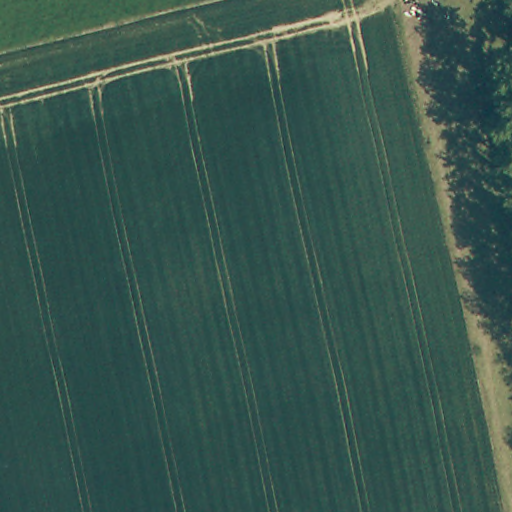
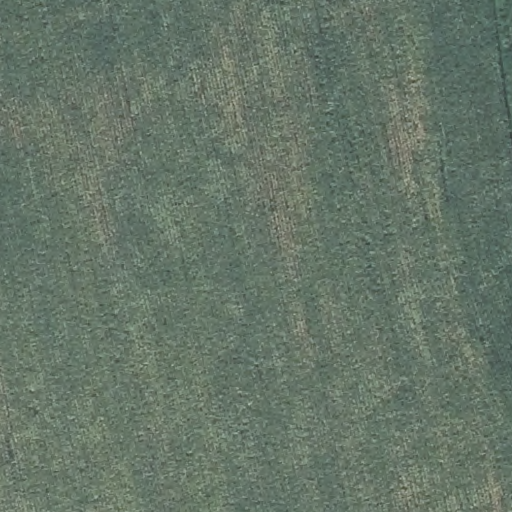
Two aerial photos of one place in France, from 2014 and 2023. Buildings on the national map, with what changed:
[]

